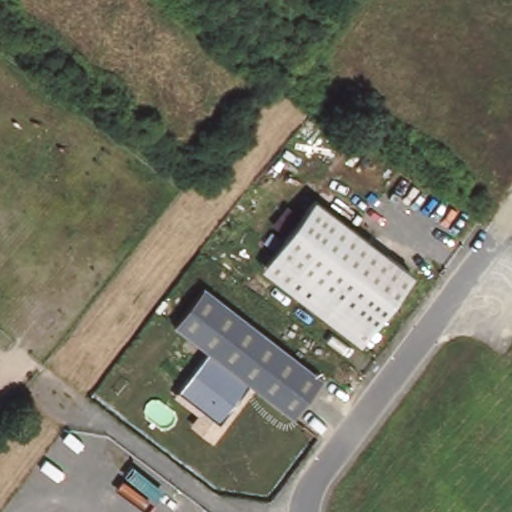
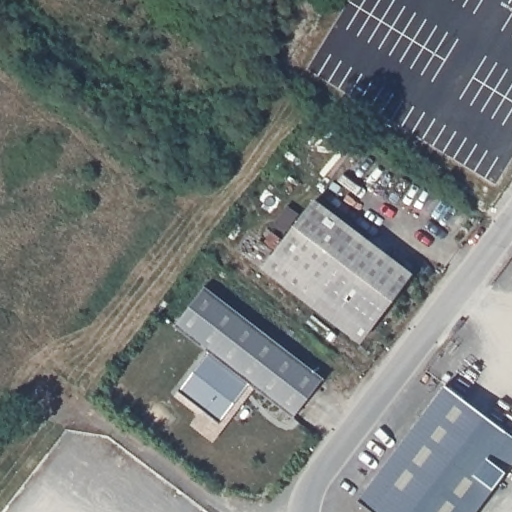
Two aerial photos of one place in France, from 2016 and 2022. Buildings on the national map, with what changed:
unchanged [(361,344),(260,269),(313,197),(413,273),(361,344)]
unchanged [(295,419),(256,389),(215,442),(190,426),(199,410),(178,393),(210,352),(172,323),(202,285),(325,377),(295,419)]
new [(505,431),(472,475),(491,489),(475,512),(373,512),(358,501),(444,385),(505,431)]
new [(505,431),(512,436),(512,463),(491,489),(472,475),(505,431)]

